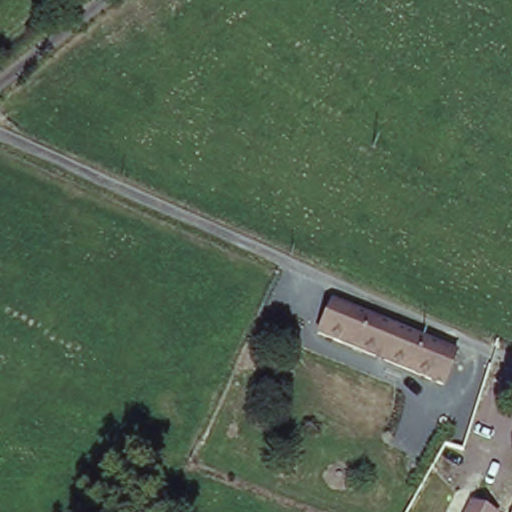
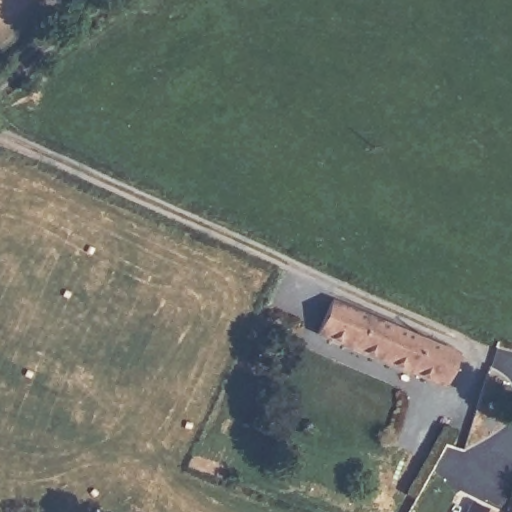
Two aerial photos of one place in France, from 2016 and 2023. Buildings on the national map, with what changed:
unchanged [(442,385),(333,342),(319,335),(332,300),(384,325),(454,353),(442,385)]
unchanged [(493,512),(458,512),(466,496),(493,512)]
unchanged [(511,512),(512,510),(512,512),(511,512)]

